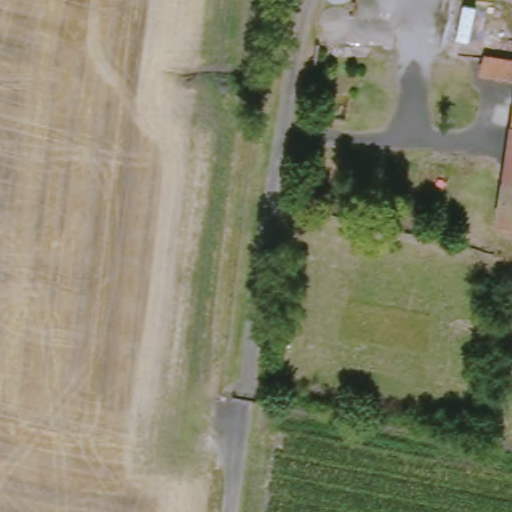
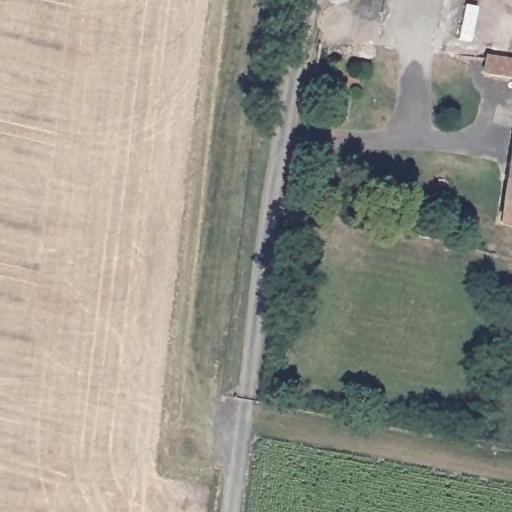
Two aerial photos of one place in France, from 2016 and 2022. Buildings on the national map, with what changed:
unchanged [(491,75),(494,56),(512,59),(512,80),(491,75)]
unchanged [(504,227),(512,176),(512,229),(504,227)]

